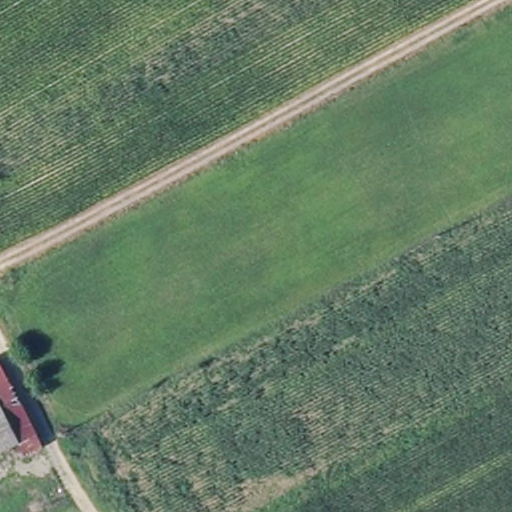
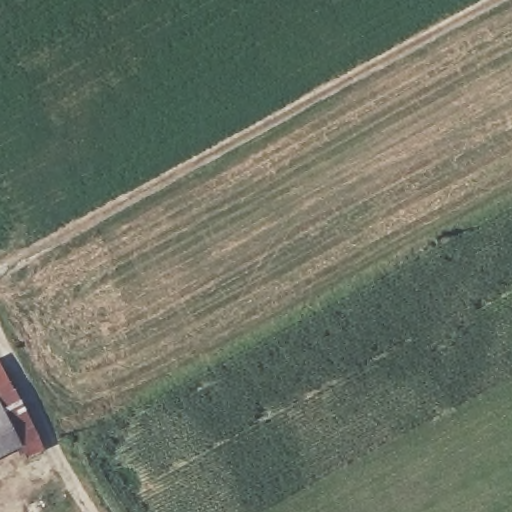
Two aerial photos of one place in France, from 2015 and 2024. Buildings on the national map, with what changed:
unchanged [(25,454),(18,443),(0,452),(0,372),(38,446),(25,454)]

